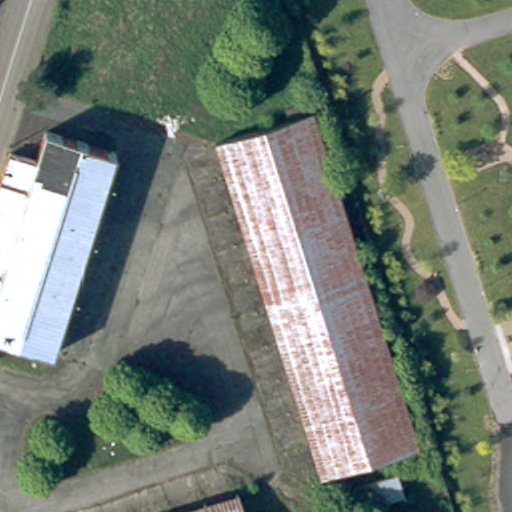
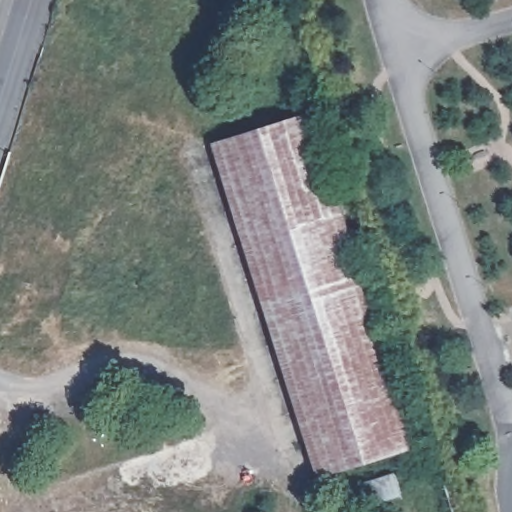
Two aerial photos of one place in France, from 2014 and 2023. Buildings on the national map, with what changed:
unchanged [(307,116),(415,451),(317,481),(210,147),(307,116)]
demolished [(47,131),(115,151),(51,354),(0,337),(0,189),(11,151),(37,160),(47,131)]
unchanged [(361,508),(355,489),(399,476),(405,495),(361,508)]

